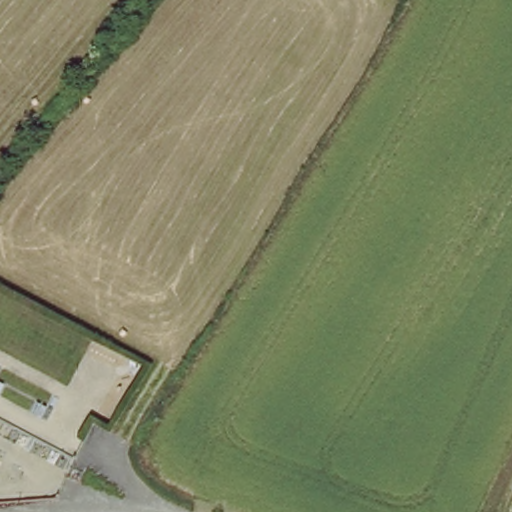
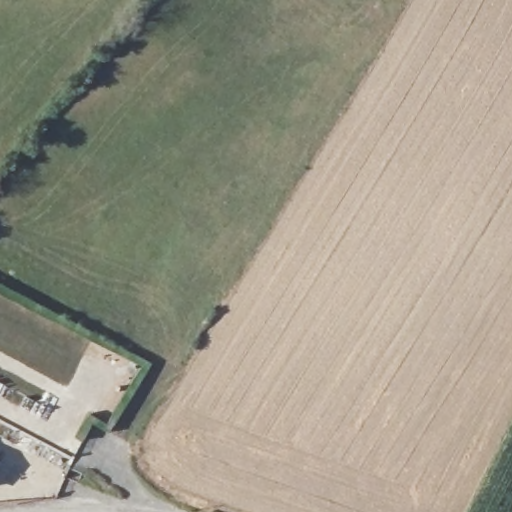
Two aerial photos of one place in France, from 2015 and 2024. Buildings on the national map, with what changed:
unchanged [(0,470),(0,462),(2,462),(0,470)]

